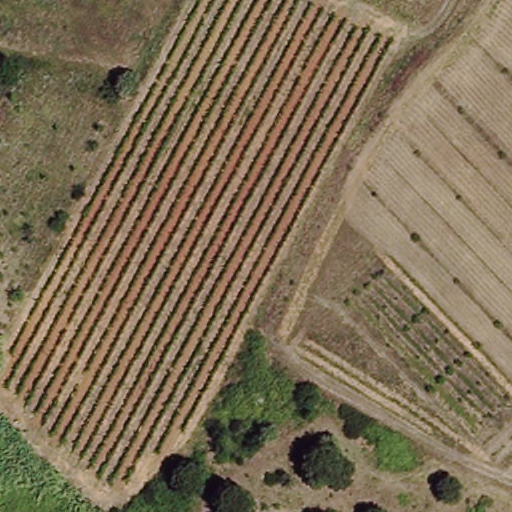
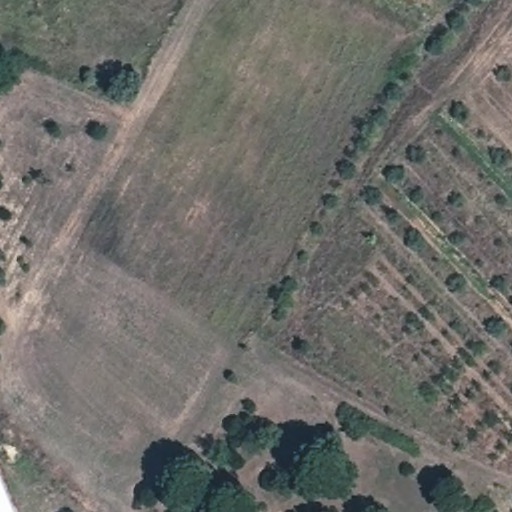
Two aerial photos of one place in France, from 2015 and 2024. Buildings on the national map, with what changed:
new [(15,512),(0,512),(0,475),(15,512)]

